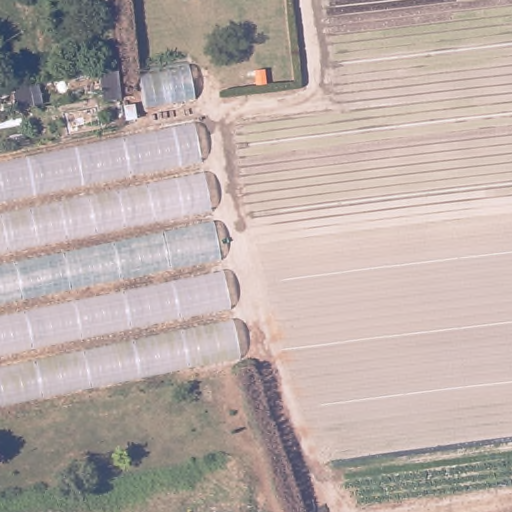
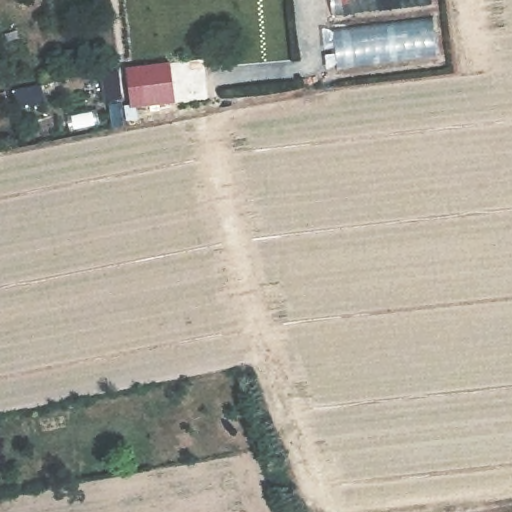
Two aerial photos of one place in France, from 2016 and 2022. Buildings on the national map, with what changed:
unchanged [(435,57),(335,69),(332,28),(432,17),(435,57)]
demolished [(247,357),(0,404),(0,159),(200,120),(247,357)]

